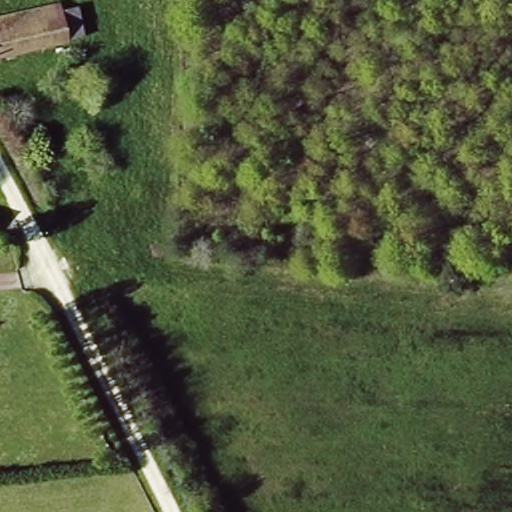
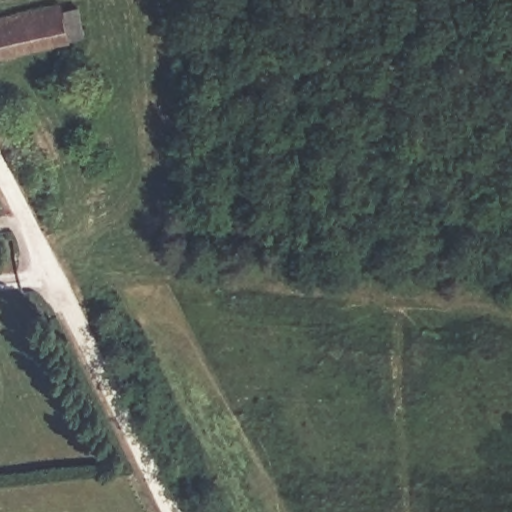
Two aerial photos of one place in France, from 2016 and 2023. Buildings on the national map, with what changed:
unchanged [(77,11),(80,48),(0,50),(0,15),(77,11)]

